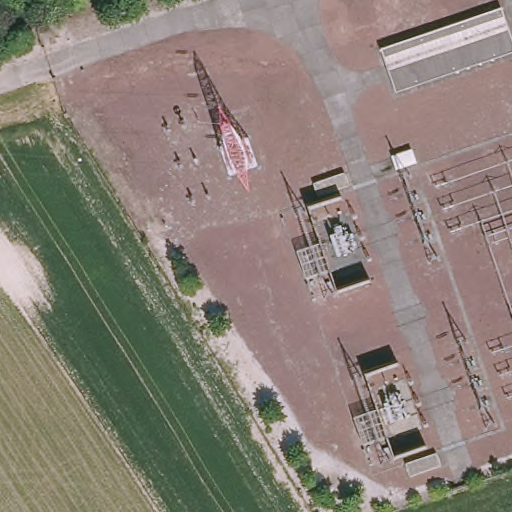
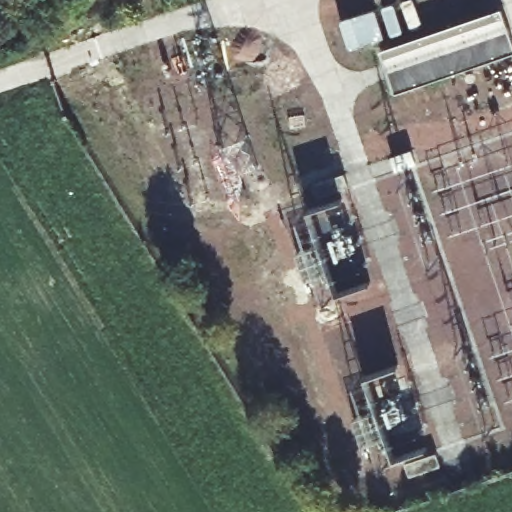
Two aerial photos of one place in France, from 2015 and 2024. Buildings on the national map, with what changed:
unchanged [(501,9),(512,42),(512,52),(396,91),(382,50),(501,9)]
unchanged [(440,452),(444,464),(410,476),(405,464),(440,452)]

